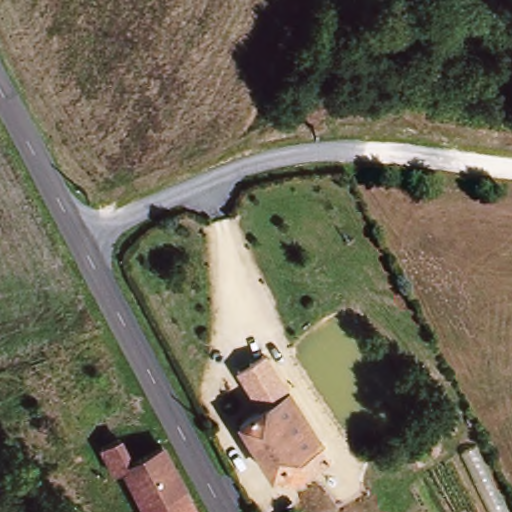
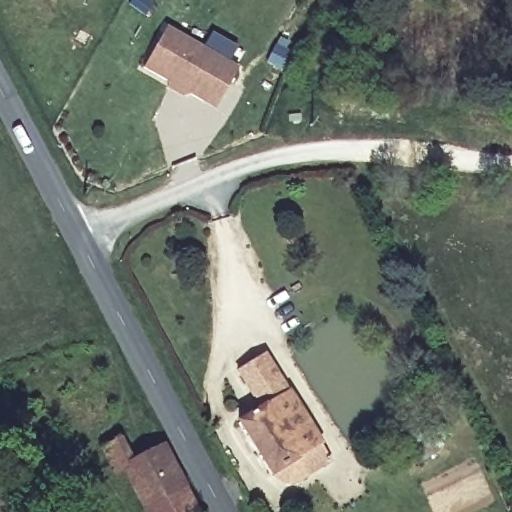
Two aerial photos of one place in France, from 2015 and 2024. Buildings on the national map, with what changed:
new [(241,67),(217,110),(192,96),(189,100),(167,89),(169,83),(144,71),(167,28),(241,67)]
unchanged [(264,351),(272,365),(328,458),(305,473),(295,456),(268,472),(237,420),(261,406),(249,387),(237,367),(264,351)]
unchanged [(162,509),(145,476),(138,463),(127,470),(114,441),(132,433),(145,460),(177,445),(200,491),(162,509)]
unchanged [(200,491),(211,512),(164,512),(162,509),(200,491)]

